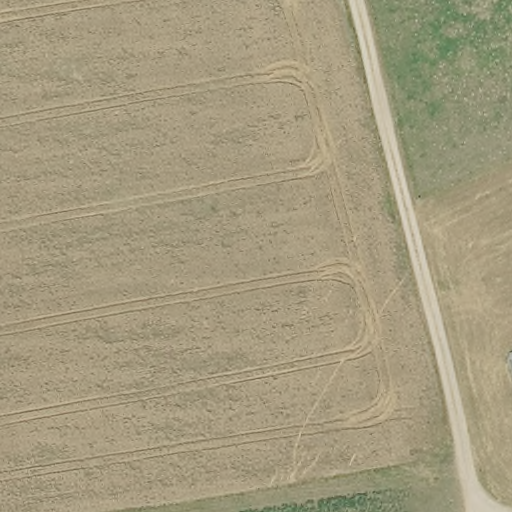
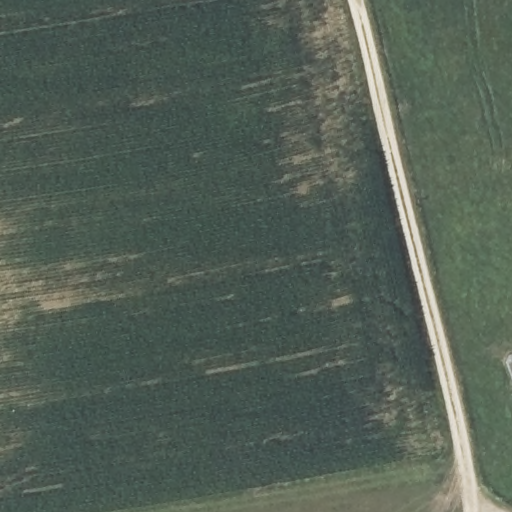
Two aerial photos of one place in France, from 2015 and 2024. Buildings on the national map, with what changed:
unchanged [(512,354),(512,386),(510,386),(500,357),(512,354)]

